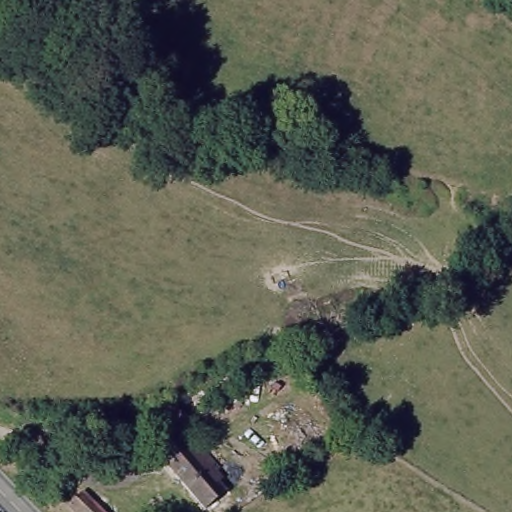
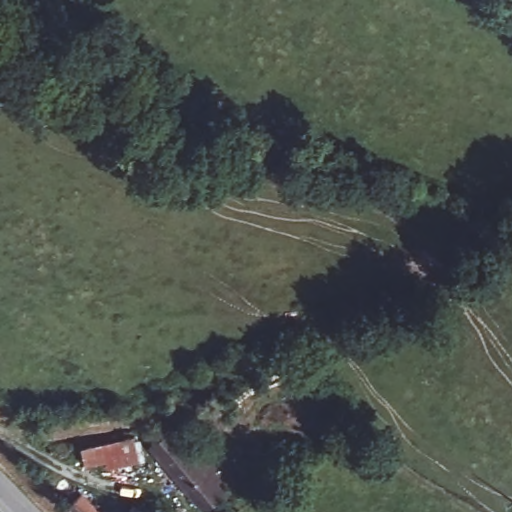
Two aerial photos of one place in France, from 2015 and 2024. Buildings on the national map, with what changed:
unchanged [(227,498),(208,512),(143,432),(162,416),(227,498)]
new [(140,437),(145,460),(85,470),(82,448),(140,437)]
unchanged [(80,486),(104,512),(80,512),(67,497),(80,486)]

